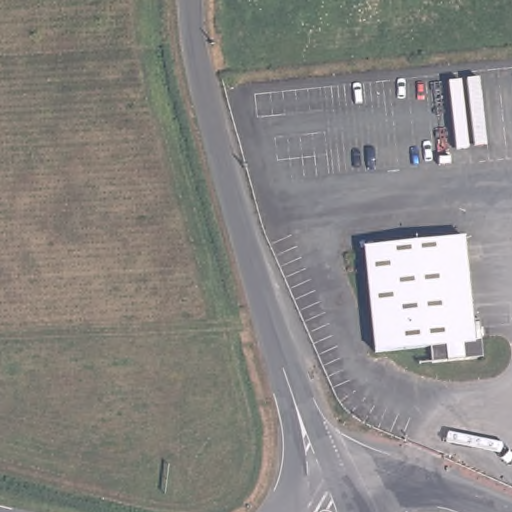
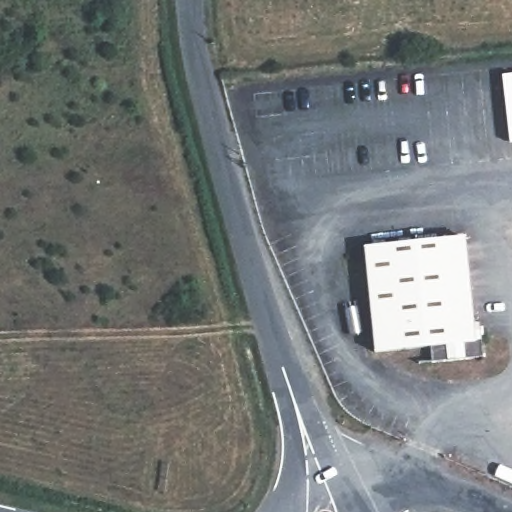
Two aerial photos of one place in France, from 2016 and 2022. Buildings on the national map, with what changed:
unchanged [(409,246),(466,241),(470,283),(474,316),(474,322),(482,322),(485,358),(442,362),(432,362),(431,349),(376,353),(373,317),(367,256),(367,250),(409,246)]

